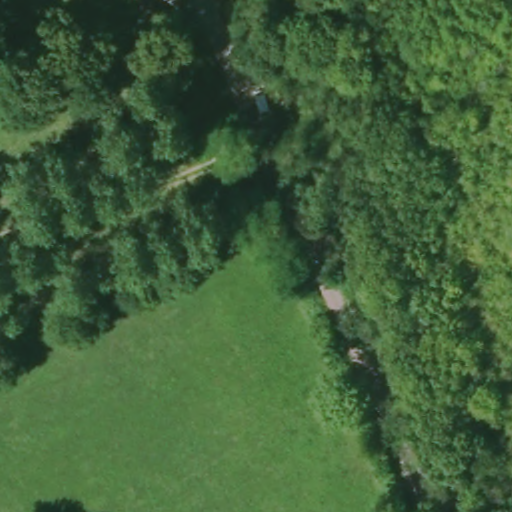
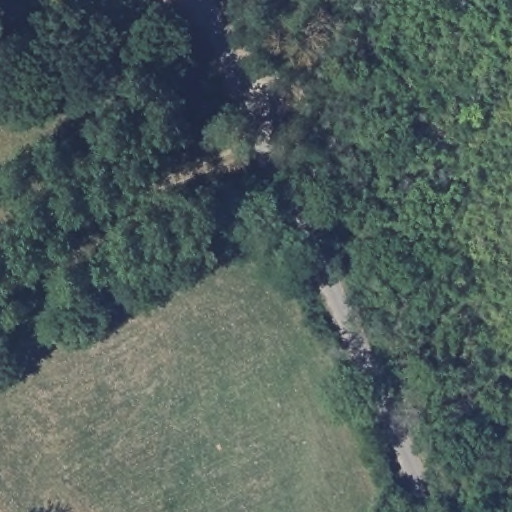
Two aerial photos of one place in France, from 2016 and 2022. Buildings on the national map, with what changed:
unchanged [(257,94),(253,85),(264,80),(268,89),(257,94)]

